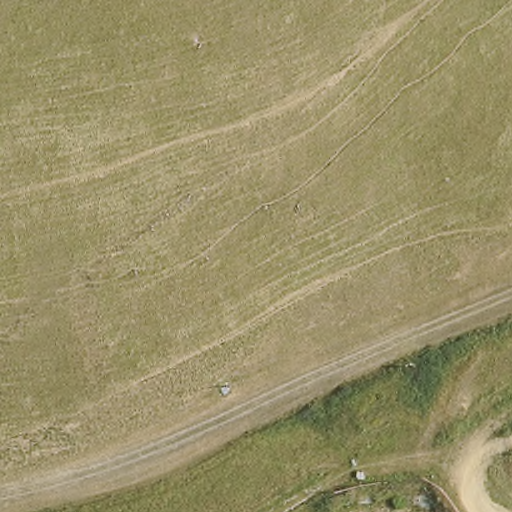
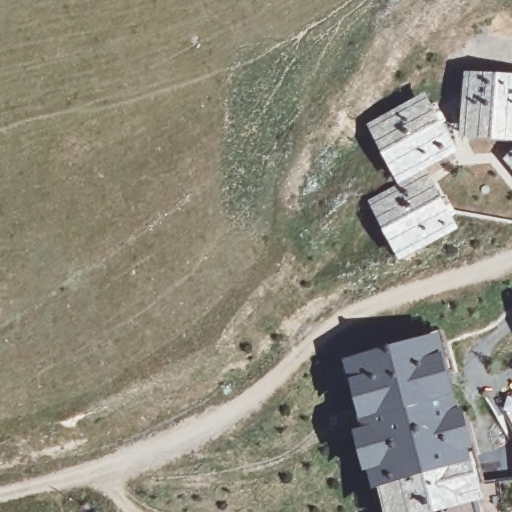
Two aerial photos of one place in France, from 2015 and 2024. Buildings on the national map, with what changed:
new [(512,76),(512,143),(462,141),(467,72),(512,76)]
new [(401,184),(368,126),(425,93),(462,154),(428,172),(462,230),(403,263),(371,201),(401,184)]
new [(505,161),(512,155),(512,170),(505,161)]
new [(442,333),(480,461),(490,502),(482,506),(483,512),(390,512),(385,489),(375,492),(358,431),(367,427),(347,361),(442,333)]

